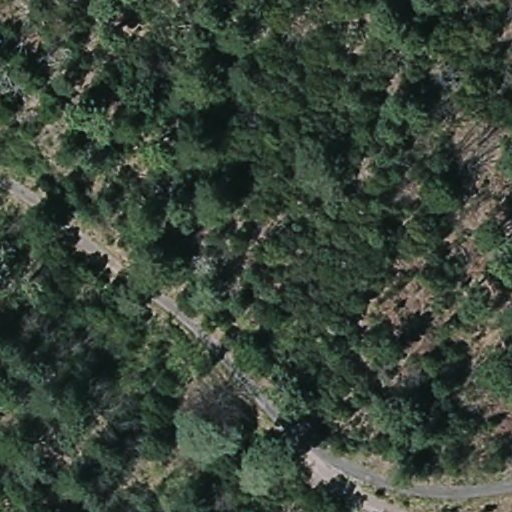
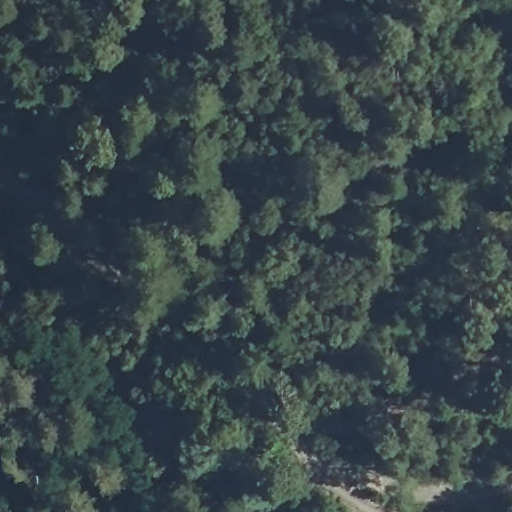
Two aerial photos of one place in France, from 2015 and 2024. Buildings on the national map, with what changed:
unchanged [(138,406),(161,418),(153,433),(130,422),(138,406)]

